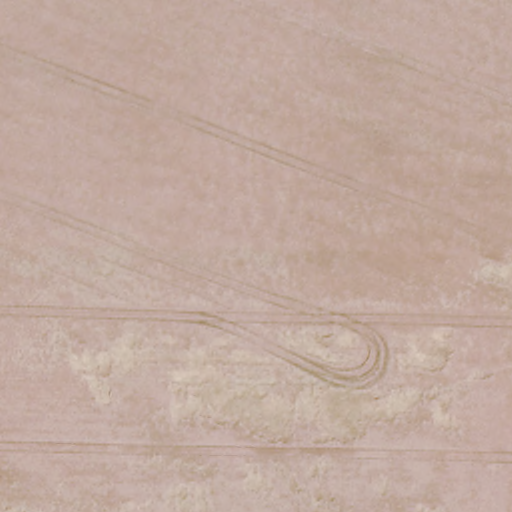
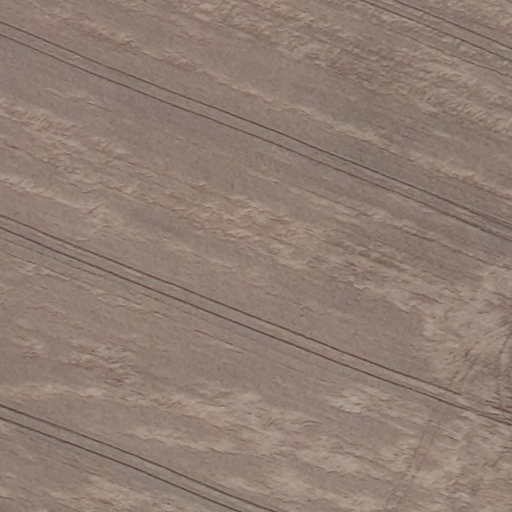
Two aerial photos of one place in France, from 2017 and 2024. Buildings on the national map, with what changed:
[]

